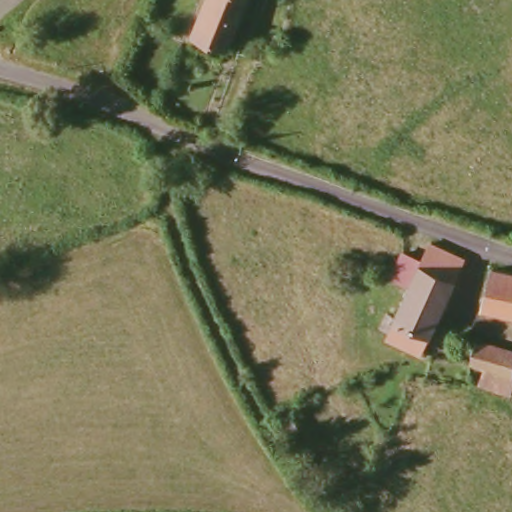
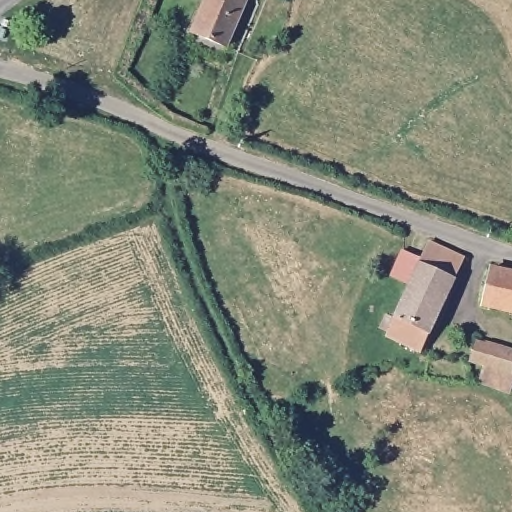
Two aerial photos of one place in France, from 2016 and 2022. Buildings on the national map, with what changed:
unchanged [(197,34),(211,0),(251,0),(232,47),(197,34)]
unchanged [(395,338),(405,314),(417,288),(401,281),(412,255),(428,262),(435,246),(467,261),(425,350),(424,352),(395,338)]
unchanged [(512,316),(487,312),(494,272),(512,275),(512,316)]
unchanged [(512,354),(512,376),(476,362),(482,343),(512,354)]

